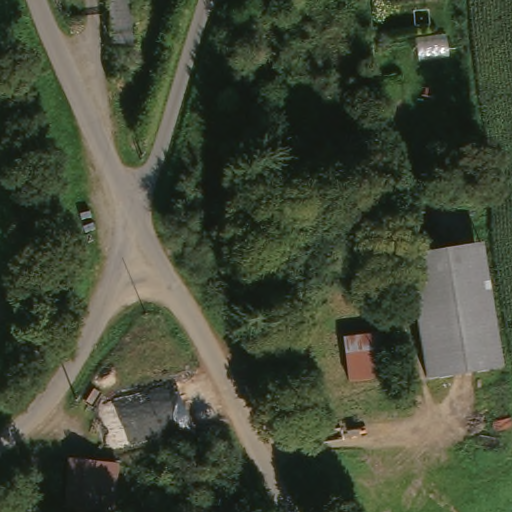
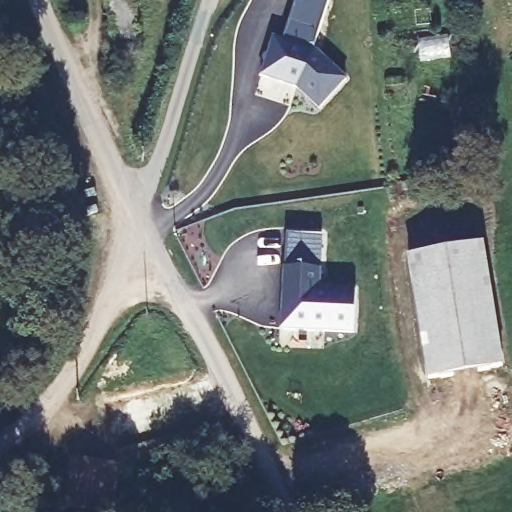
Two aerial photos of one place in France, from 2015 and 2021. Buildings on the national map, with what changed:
unchanged [(117,56),(110,0),(137,0),(144,52),(117,56)]
new [(273,36),(284,39),(289,23),(318,31),(312,49),(316,50),(346,78),(318,107),(296,86),(260,75),(273,36)]
unchanged [(429,373),(411,254),(485,243),(503,362),(429,373)]
new [(283,268),(321,269),(321,288),(356,290),(354,333),(280,329),(283,268)]
unchanged [(66,509),(71,459),(114,464),(109,512),(66,509)]

